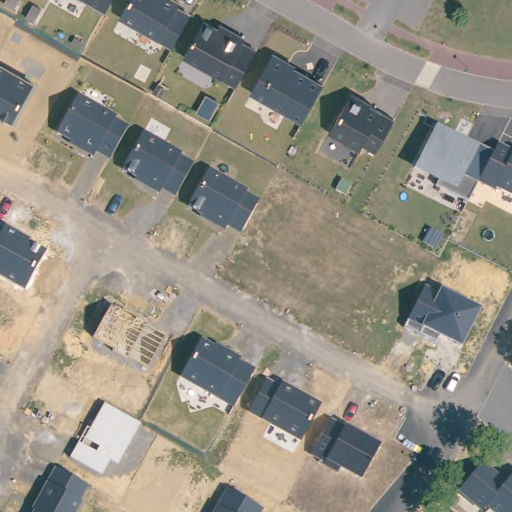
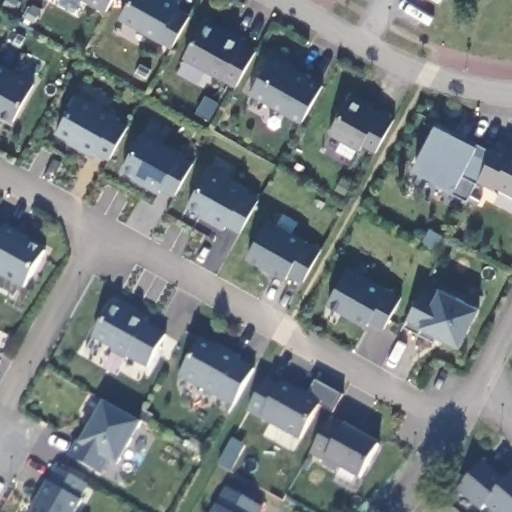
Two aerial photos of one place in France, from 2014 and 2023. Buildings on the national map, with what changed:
unchanged [(106,12),(83,0),(113,0),(106,12)]
unchanged [(129,0),(172,0),(180,4),(178,9),(191,17),(173,49),(159,42),(119,18),(129,0)]
unchanged [(203,21),(217,29),(220,25),(246,40),(243,44),(257,52),(238,87),(223,80),(183,58),(203,21)]
unchanged [(274,55),(324,86),(301,123),(251,93),(274,55)]
unchanged [(35,84),(14,122),(0,116),(0,65),(35,84)]
unchanged [(78,95),(117,117),(115,119),(130,127),(111,160),(96,153),(94,156),(56,133),(78,95)]
unchanged [(381,113),(394,121),(376,153),(363,147),(359,152),(328,133),(350,95),(381,113)]
unchanged [(493,151),(498,142),(512,150),(512,149),(512,197),(496,188),(495,191),(478,183),(468,201),(434,185),(436,181),(414,169),(435,125),(436,122),(493,151)]
unchanged [(183,153),(181,157),(194,164),(176,197),(162,190),(159,193),(121,170),(144,131),(183,153)]
unchanged [(248,190),(246,194),(259,201),(241,234),(226,226),(224,229),(196,214),(197,211),(189,205),(210,168),(248,190)]
new [(322,251),(303,284),(288,275),(286,281),(248,259),(269,221),(308,242),(322,251)]
unchanged [(3,231),(6,225),(32,239),(30,243),(46,251),(25,289),(0,276),(0,229),(3,231)]
new [(383,331),(370,322),(368,327),(329,305),(347,267),(390,290),(402,296),(383,331)]
unchanged [(438,292),(440,289),(479,309),(461,347),(441,337),(436,343),(404,327),(425,285),(438,292)]
unchanged [(148,369),(128,358),(127,361),(112,352),(114,350),(93,339),(112,305),(121,310),(124,307),(149,323),(167,333),(148,369)]
unchanged [(202,339),(216,347),(218,345),(242,359),(241,361),(256,370),(234,407),(181,377),(202,339)]
unchanged [(266,377),(280,386),(283,381),(322,403),(300,441),(248,410),(266,377)]
unchanged [(80,442),(102,401),(143,423),(117,467),(111,462),(102,476),(70,457),(80,442)]
unchanged [(330,418),(345,426),(380,446),(361,480),(341,469),(338,474),(320,464),(322,461),(310,454),(330,418)]
unchanged [(512,472),(512,512),(493,512),(486,506),(482,512),(457,490),(480,459),(505,480),(512,472)]
unchanged [(91,486),(77,512),(34,512),(58,467),(91,486)]
unchanged [(221,505),(229,490),(264,509),(263,512),(212,512),(217,503),(221,505)]

